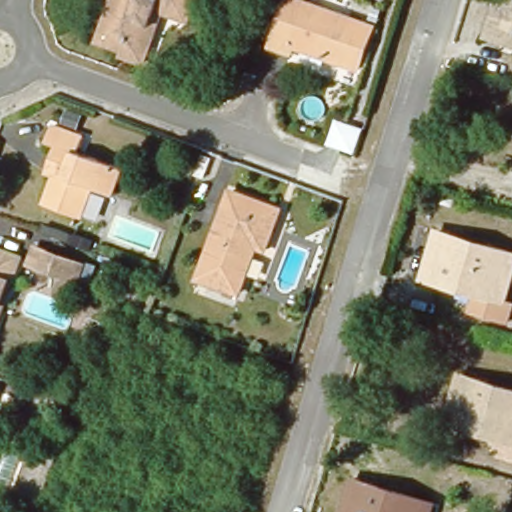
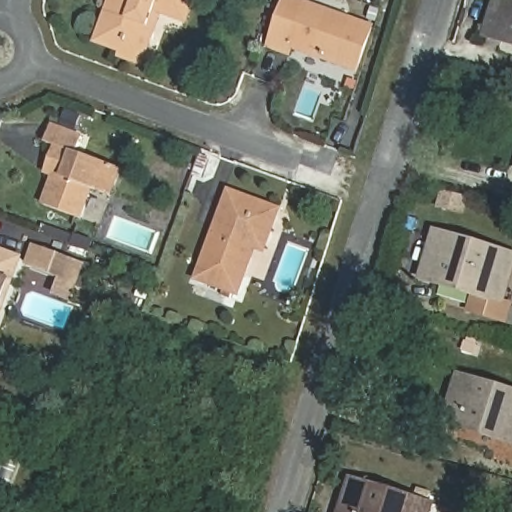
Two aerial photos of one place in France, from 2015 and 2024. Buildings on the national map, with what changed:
unchanged [(192,19),(157,7),(145,40),(135,36),(130,50),(104,41),(119,0),(199,0),(192,19)]
unchanged [(357,69),(293,46),(290,53),(272,46),(289,0),(297,0),(372,27),(357,69)]
unchanged [(490,30),(500,0),(512,0),(512,37),(490,30)]
unchanged [(115,196),(92,188),(81,218),(45,205),(65,149),(49,143),(56,124),(82,134),(76,152),(125,170),(115,196)]
unchanged [(265,248),(256,245),(239,292),(199,278),(230,192),(279,210),(265,248)]
unchanged [(503,300),(484,294),(484,291),(426,274),(439,232),(512,254),(512,270),(503,300)]
unchanged [(94,242),(91,252),(73,245),(76,236),(94,242)]
unchanged [(71,300),(54,294),(60,278),(26,265),(34,244),(85,263),(71,300)]
unchanged [(0,314),(0,250),(20,257),(0,314)]
unchanged [(507,444),(508,441),(450,424),(463,380),(512,394),(512,445),(507,444)]
unchanged [(345,512),(354,479),(432,503),(429,512),(345,512)]

